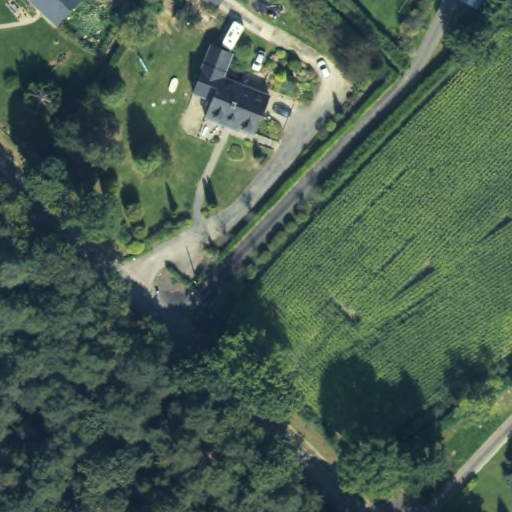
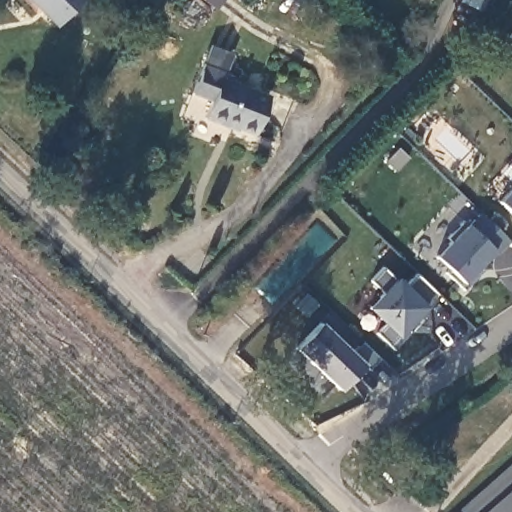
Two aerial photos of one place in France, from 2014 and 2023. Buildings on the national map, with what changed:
unchanged [(60,28),(32,0),(88,0),(88,1),(60,28)]
unchanged [(218,9),(205,0),(225,0),(218,9)]
unchanged [(268,92),(254,128),(228,118),(226,123),(204,114),(211,97),(192,90),(203,61),(209,44),(229,52),(223,68),(221,74),(268,92)]
new [(499,204),(512,190),(512,216),(499,204)]
new [(500,256),(495,252),(465,285),(433,257),(465,222),(469,226),(478,212),(512,243),(500,256)]
new [(417,320),(419,325),(393,352),(377,334),(385,325),(367,306),(383,291),(372,280),(385,266),(398,277),(407,287),(418,271),(441,295),(417,320)]
new [(339,389),(337,387),(326,399),(312,388),(324,374),(296,350),(322,322),(365,364),(339,389)]

